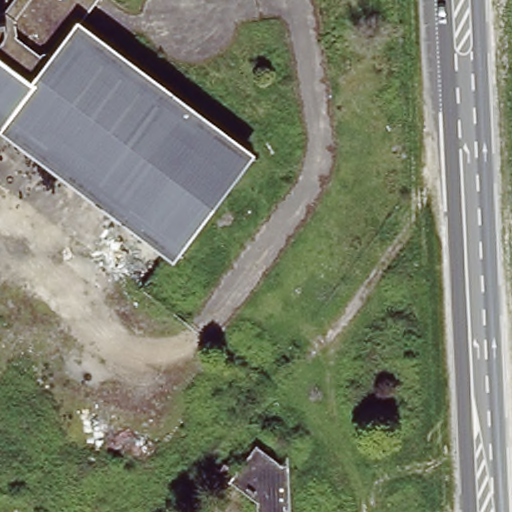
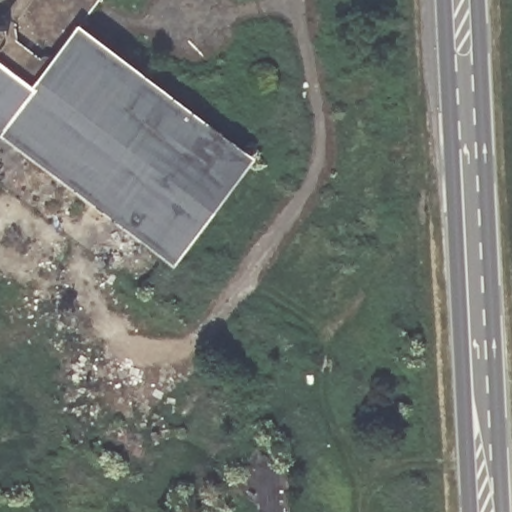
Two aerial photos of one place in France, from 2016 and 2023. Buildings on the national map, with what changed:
unchanged [(75,26),(245,154),(170,252),(0,122),(0,0),(96,0),(75,26)]
unchanged [(290,470),(292,512),(263,512),(262,496),(236,476),(255,445),(290,470)]

